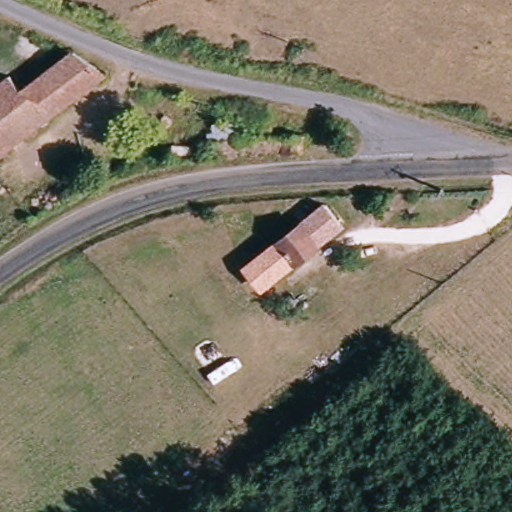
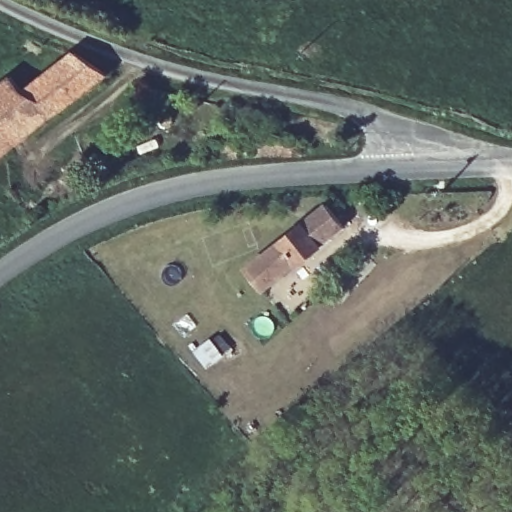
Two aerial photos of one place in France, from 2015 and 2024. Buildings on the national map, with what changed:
unchanged [(15,96),(65,51),(101,71),(0,151),(0,81),(2,79),(15,96)]
unchanged [(301,150),(207,161),(205,143),(205,127),(236,125),(237,141),(300,136),(301,150)]
unchanged [(258,290),(243,271),(320,208),(335,227),(258,290)]

